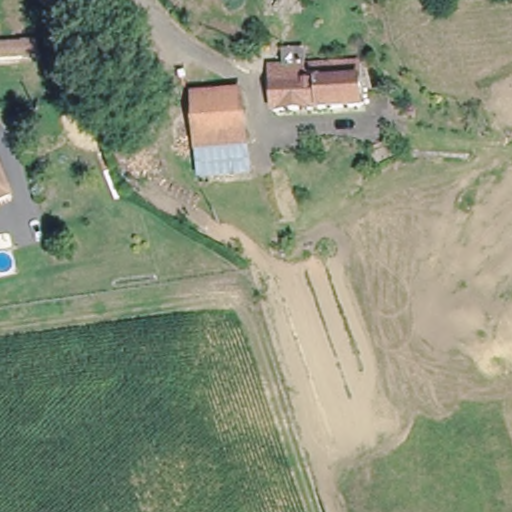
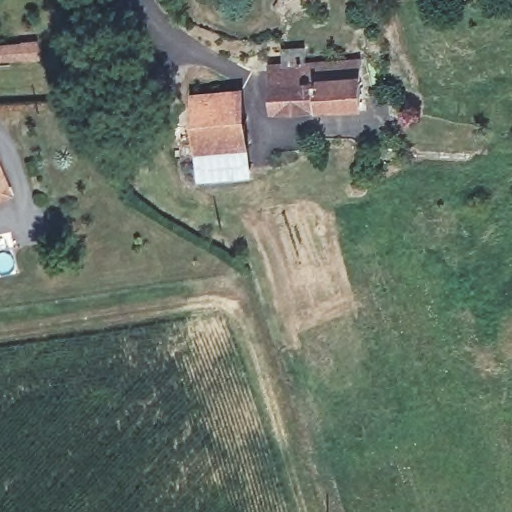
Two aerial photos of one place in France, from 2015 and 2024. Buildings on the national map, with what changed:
unchanged [(91,22),(123,5),(142,40),(112,58),(91,22)]
unchanged [(37,36),(36,54),(0,56),(0,38),(12,37),(37,36)]
unchanged [(142,40),(167,87),(137,106),(112,58),(142,40)]
unchanged [(281,63),(281,50),(307,49),(307,61),(358,57),(362,104),(276,109),(273,84),(269,64),(281,63)]
unchanged [(251,168),(200,172),(195,94),(241,90),(251,168)]
unchanged [(0,200),(0,171),(9,197),(0,200)]

